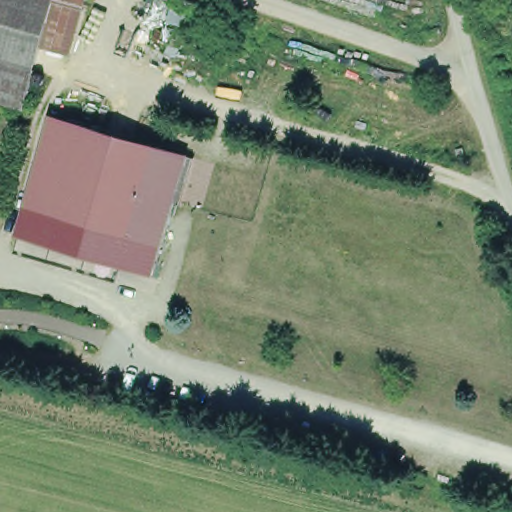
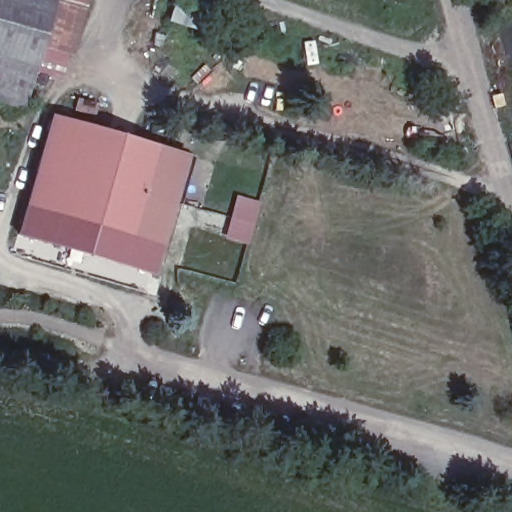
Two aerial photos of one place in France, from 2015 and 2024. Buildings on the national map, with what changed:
unchanged [(54,0),(43,37),(41,45),(36,62),(23,107),(0,101),(0,0),(54,0)]
unchanged [(54,0),(80,0),(80,1),(68,44),(66,51),(41,45),(43,37),(54,0)]
unchanged [(192,155),(159,269),(158,272),(23,234),(24,232),(57,116),(192,155)]
new [(237,197),(261,202),(251,247),(226,241),(237,197)]

